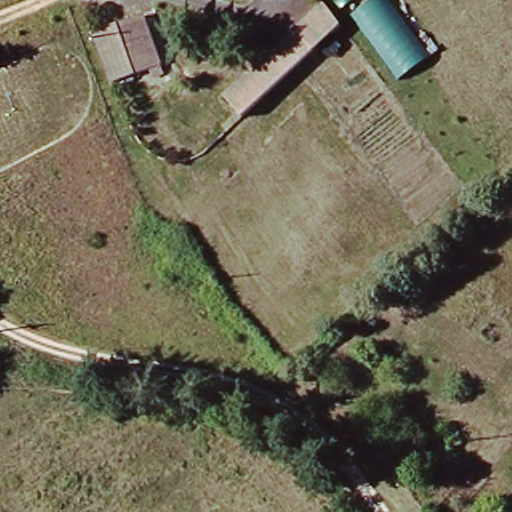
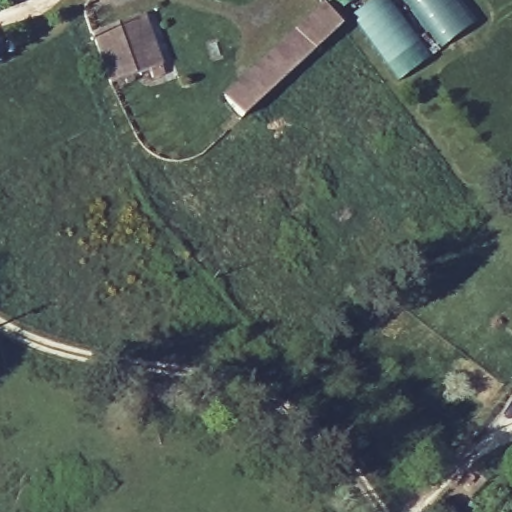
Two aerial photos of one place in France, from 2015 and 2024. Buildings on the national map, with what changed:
unchanged [(353,15),(374,0),(390,0),(429,56),(398,79),(353,15)]
new [(465,28),(444,44),(411,0),(456,0),(452,3),(465,28)]
unchanged [(351,26),(253,121),(234,101),(333,4),(351,26)]
unchanged [(104,35),(153,15),(172,64),(123,84),(104,35)]

